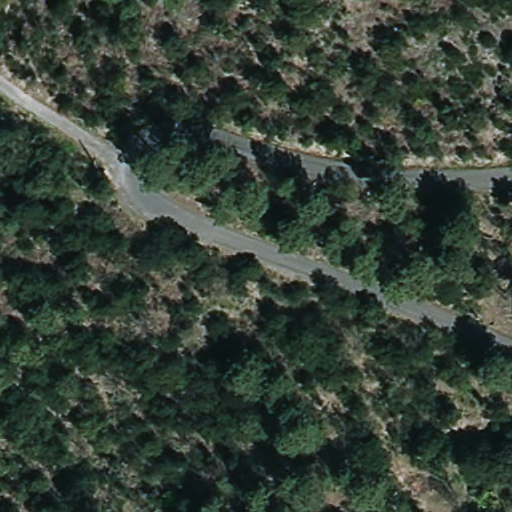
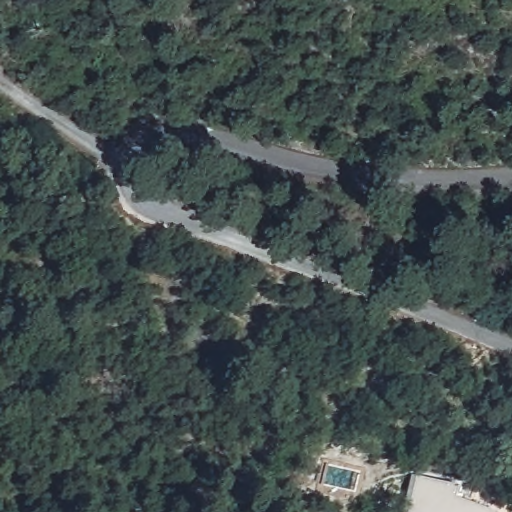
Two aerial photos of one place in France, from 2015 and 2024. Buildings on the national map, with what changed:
new [(459,485),(457,497),(496,512),(406,512),(415,475),(459,485)]

